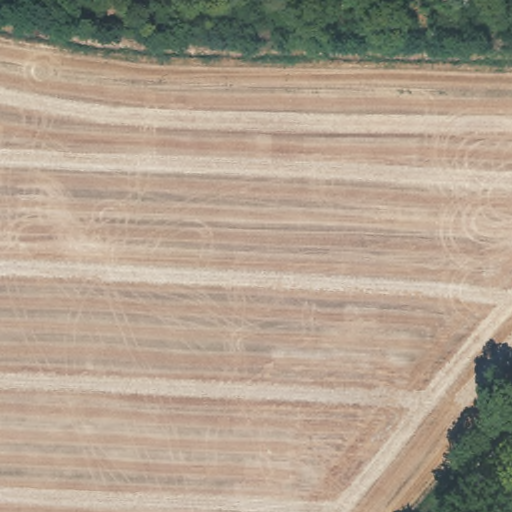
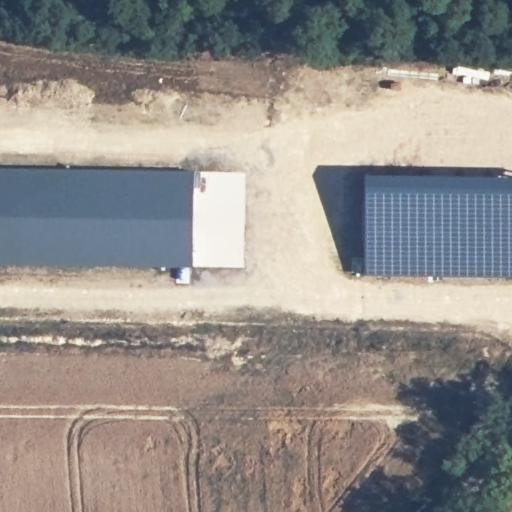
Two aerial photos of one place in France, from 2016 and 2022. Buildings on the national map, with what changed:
new [(0,265),(0,168),(194,170),(194,267),(0,265)]
new [(365,275),(366,174),(512,176),(512,275),(365,275)]

